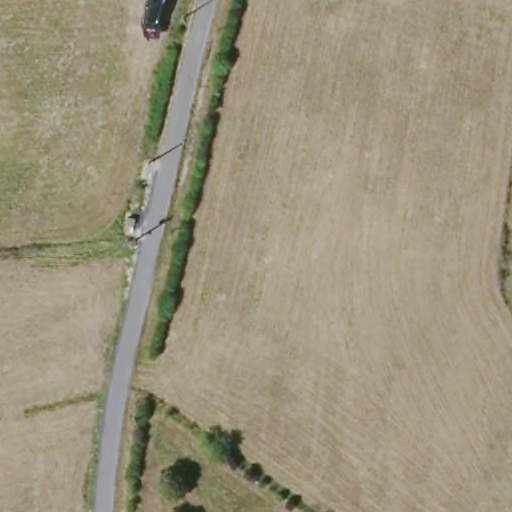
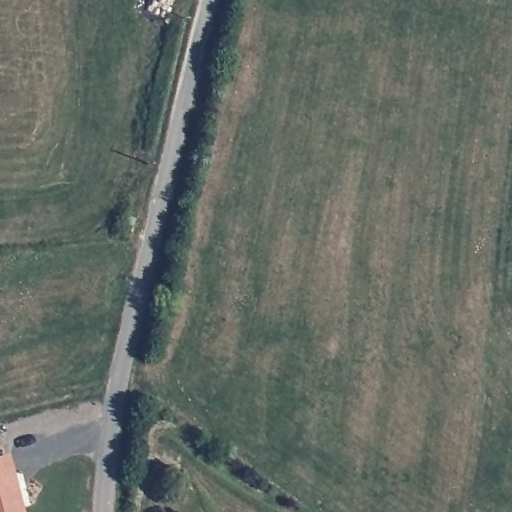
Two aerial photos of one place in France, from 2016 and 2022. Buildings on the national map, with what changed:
new [(24,512),(0,512),(0,456),(10,454),(24,512)]

